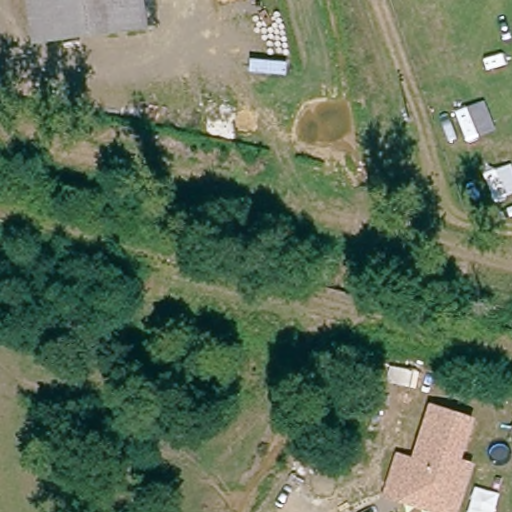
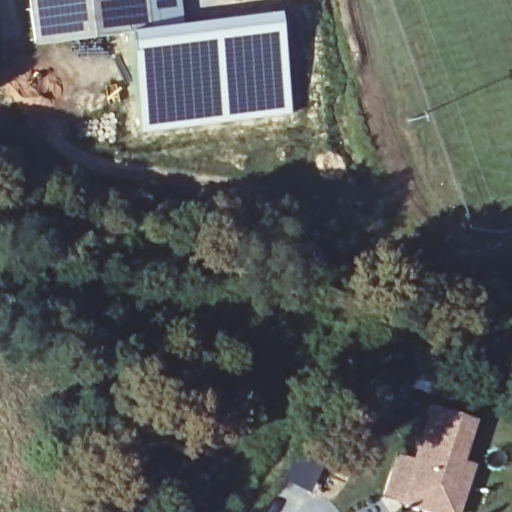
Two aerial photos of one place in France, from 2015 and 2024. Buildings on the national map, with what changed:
unchanged [(148,29),(35,43),(30,0),(144,0),(148,29)]
new [(129,31),(148,29),(144,0),(178,0),(180,25),(278,13),(291,114),(141,133),(129,31)]
unchanged [(382,497),(396,453),(412,459),(430,404),(477,420),(464,460),(476,465),(459,512),(426,512),(400,504),(382,497)]

